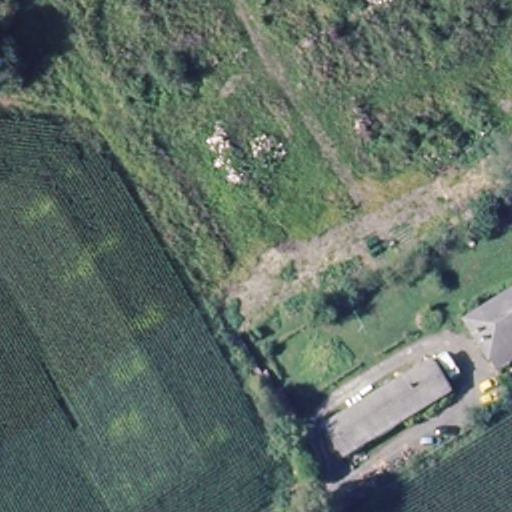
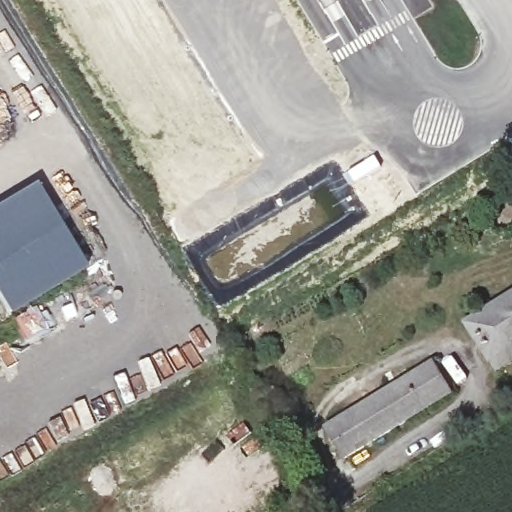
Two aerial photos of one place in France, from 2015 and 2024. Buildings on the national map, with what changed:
new [(11,316),(0,298),(0,205),(36,184),(86,271),(11,316)]
unchanged [(512,298),(512,352),(496,362),(471,324),(512,298)]
unchanged [(431,363),(451,393),(345,460),(327,429),(431,363)]

